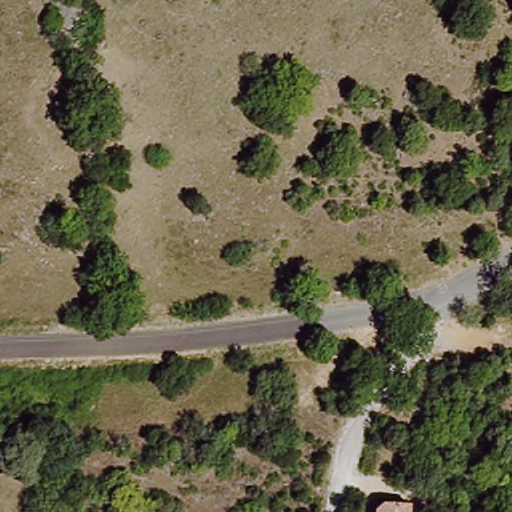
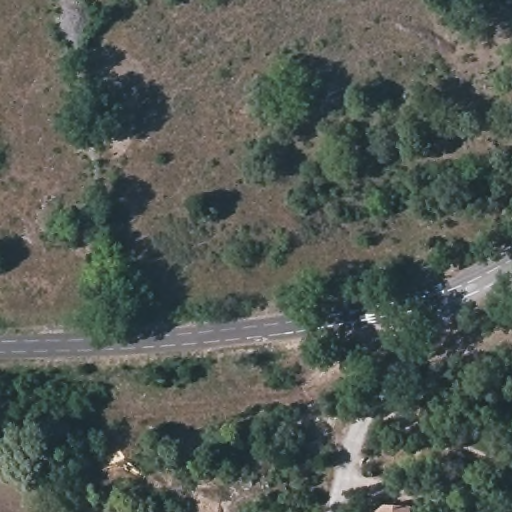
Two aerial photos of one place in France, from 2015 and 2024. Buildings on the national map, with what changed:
unchanged [(414,512),(375,512),(376,503),(414,503),(414,512)]

